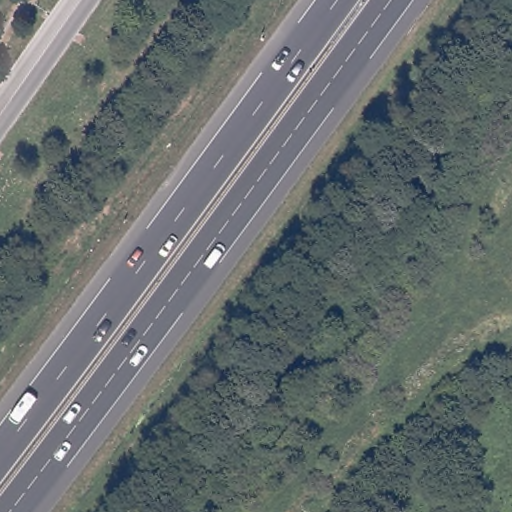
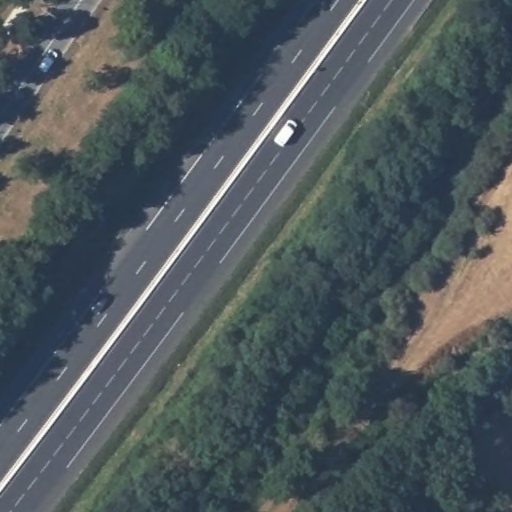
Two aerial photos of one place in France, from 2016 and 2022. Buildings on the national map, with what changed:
[]

